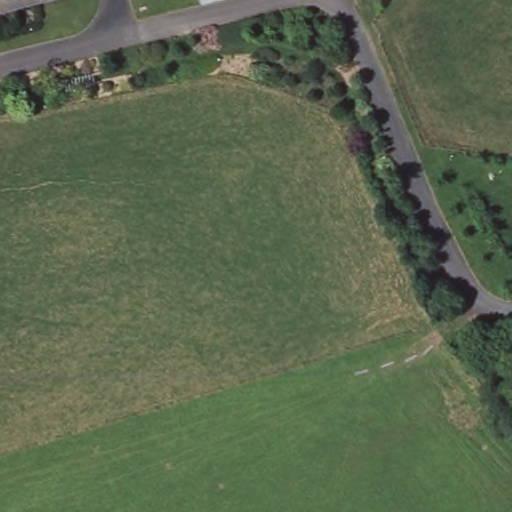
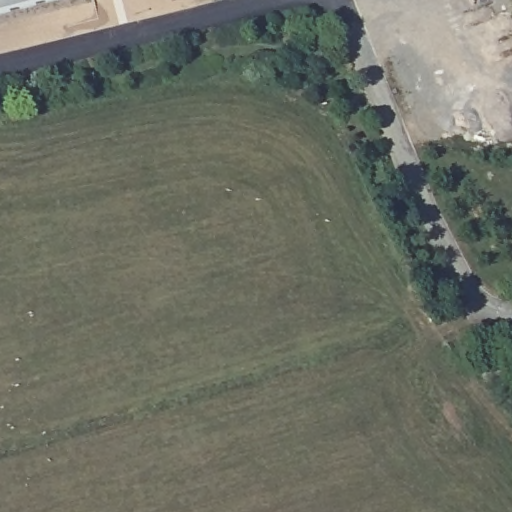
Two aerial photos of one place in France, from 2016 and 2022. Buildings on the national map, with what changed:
unchanged [(0,0),(45,0),(0,11),(0,0)]
unchanged [(198,0),(214,0),(199,4),(198,0)]

